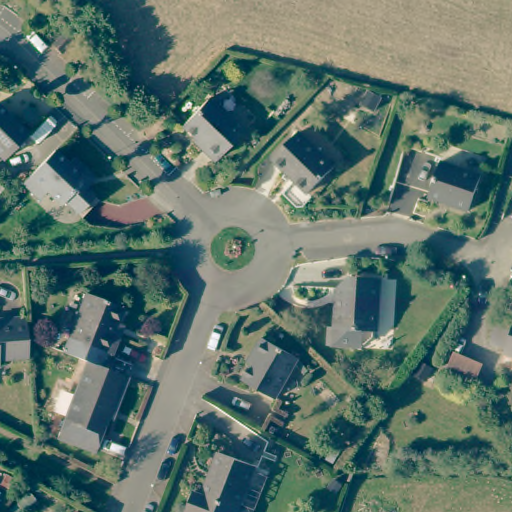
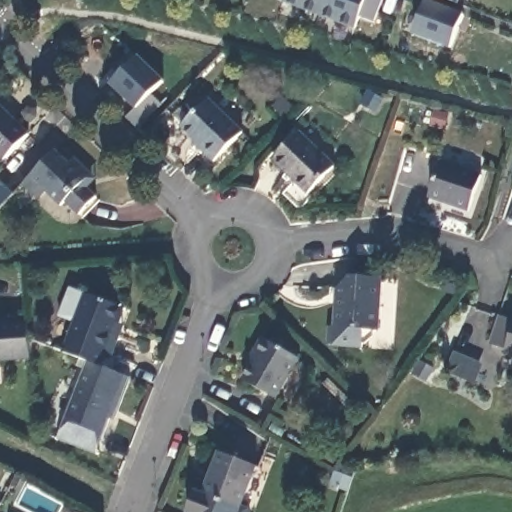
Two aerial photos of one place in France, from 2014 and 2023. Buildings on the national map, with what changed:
new [(361,18),(356,29),(283,1),(284,0),(383,0),(376,23),(361,18)]
new [(452,49),(413,34),(426,0),(463,14),(452,49)]
new [(450,0),(461,0),(460,4),(450,0)]
unchanged [(75,40),(62,54),(53,45),(66,32),(75,40)]
new [(164,81),(154,91),(162,104),(139,130),(127,117),(135,108),(111,84),(138,56),(164,81)]
unchanged [(201,149),(202,148),(182,127),(208,100),(242,133),(214,162),(201,149)]
unchanged [(5,160),(0,156),(0,107),(29,135),(5,160)]
unchanged [(299,132),(335,167),(308,194),(272,159),(299,132)]
unchanged [(28,184),(36,177),(61,151),(74,164),(80,159),(96,175),(101,179),(92,188),(101,197),(84,215),(71,202),(67,206),(52,192),(44,200),(28,184)]
unchanged [(446,161),(486,174),(475,210),(434,198),(446,161)]
unchanged [(382,333),(382,348),(335,344),(336,327),(341,328),(343,288),(356,277),(386,279),(382,333)]
unchanged [(92,362),(68,353),(91,294),(128,308),(122,323),(128,325),(124,337),(116,355),(111,353),(106,367),(100,365),(92,362)]
unchanged [(0,360),(0,320),(27,318),(28,339),(30,358),(0,360)]
unchanged [(512,360),(509,359),(511,354),(495,349),(503,319),(512,322),(512,360)]
unchanged [(248,381),(263,353),(260,351),(267,338),(304,359),(281,399),(248,381)]
new [(456,352),(485,364),(477,384),(447,372),(456,352)]
unchanged [(119,420),(114,419),(101,454),(62,439),(92,362),(100,365),(106,367),(135,378),(119,420)]
unchanged [(251,496),(257,499),(260,504),(257,512),(224,512),(197,502),(205,481),(212,484),(229,442),(266,456),(251,496)]
unchanged [(6,504),(1,512),(0,512),(0,501),(6,504)]

